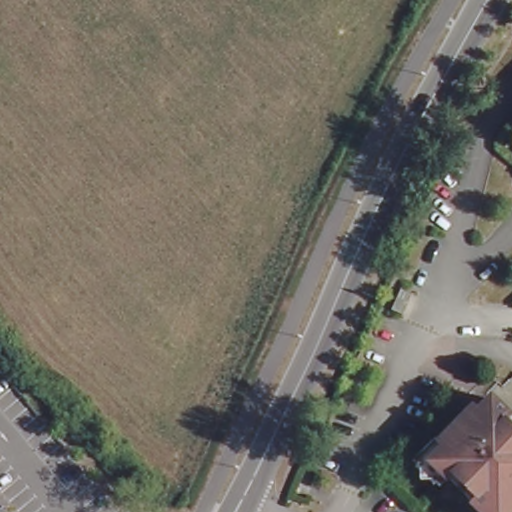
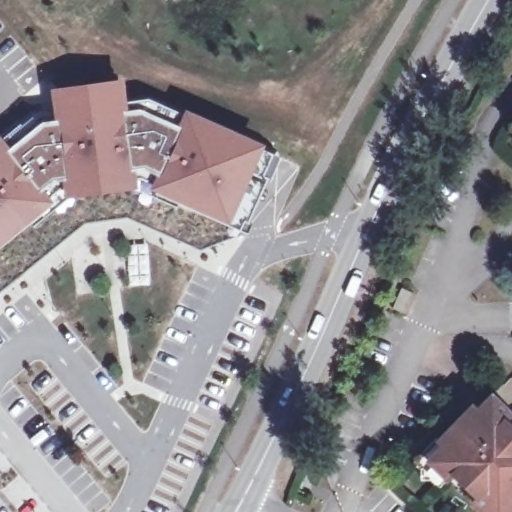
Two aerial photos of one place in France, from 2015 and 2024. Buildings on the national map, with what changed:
new [(31,64),(61,92),(118,83),(129,81),(132,99),(152,101),(168,109),(168,108),(223,134),(222,135),(275,159),(266,180),(270,182),(263,198),(262,197),(246,233),(206,249),(129,214),(84,220),(0,288),(0,91),(31,64)]
unchanged [(512,116),(512,146),(498,133),(512,116)]
unchanged [(401,294),(412,299),(403,319),(392,314),(401,294)]
unchanged [(417,484),(416,473),(411,468),(433,444),(434,446),(462,418),(466,422),(487,401),(482,396),(493,384),(497,389),(511,374),(512,376),(512,498),(509,502),(512,505),(512,511),(511,512),(476,512),(467,504),(472,499),(451,478),(446,483),(442,480),(434,489),(428,484),(417,484)]
unchanged [(512,498),(512,505),(509,502),(512,498)]
unchanged [(512,511),(512,512),(511,512),(512,511)]

